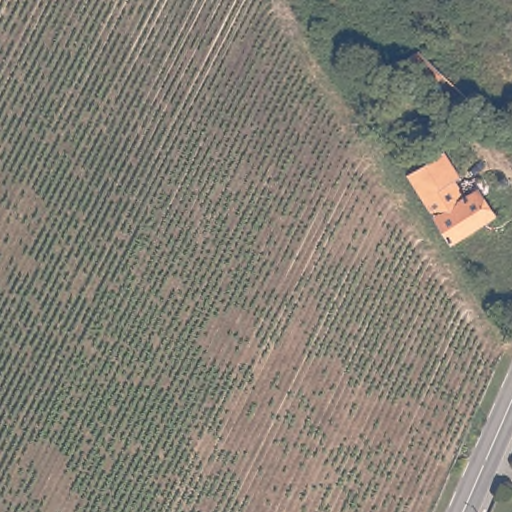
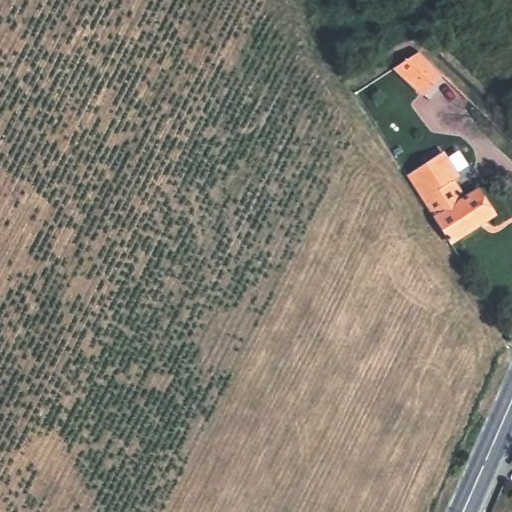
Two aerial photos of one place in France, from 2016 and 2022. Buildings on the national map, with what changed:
unchanged [(418,54),(441,75),(421,96),(393,69),(418,54)]
unchanged [(445,150),(460,173),(454,177),(465,194),(478,185),(495,210),(451,238),(410,172),(445,150)]

